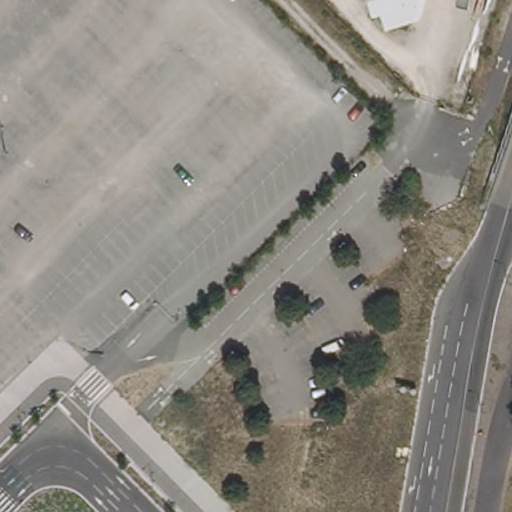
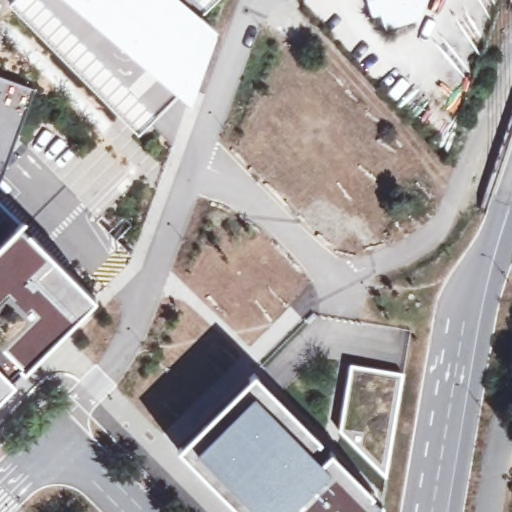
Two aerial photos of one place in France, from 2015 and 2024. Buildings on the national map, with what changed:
new [(208,0),(196,11),(215,28),(189,101),(176,91),(136,130),(9,0),(208,0)]
unchanged [(392,30),(387,15),(379,17),(373,0),(427,0),(420,21),(392,30)]
new [(32,89),(0,177),(0,78),(32,89)]
new [(0,241),(0,203),(19,222),(0,241)]
new [(19,222),(94,298),(22,368),(12,377),(0,390),(0,241),(19,222)]
new [(349,365),(402,373),(385,477),(339,431),(349,365)]
new [(255,374),(382,502),(380,512),(242,512),(180,449),(255,374)]

